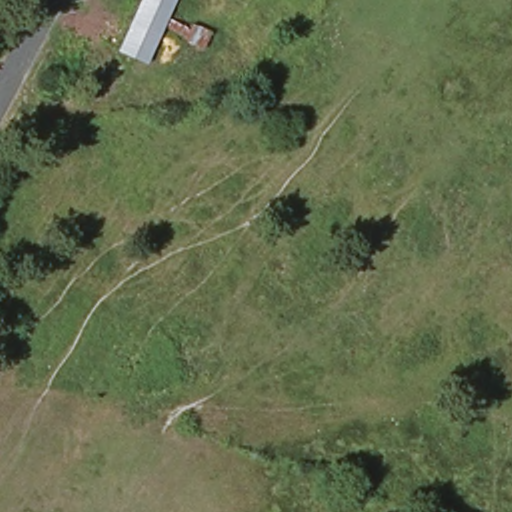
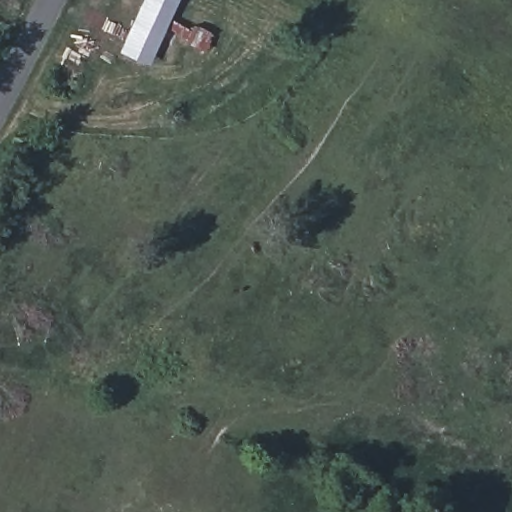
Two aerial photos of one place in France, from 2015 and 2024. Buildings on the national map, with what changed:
unchanged [(147,60),(122,48),(145,0),(181,0),(147,60)]

